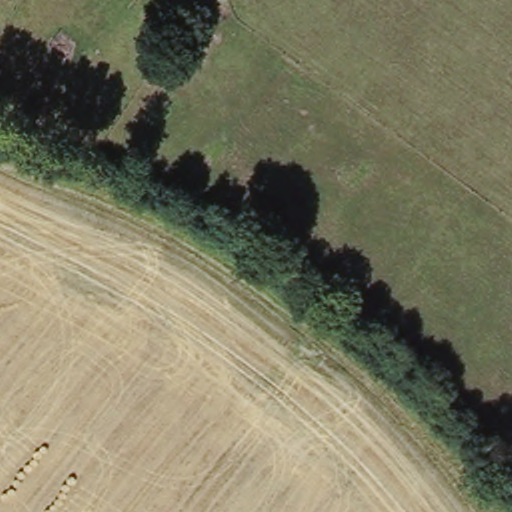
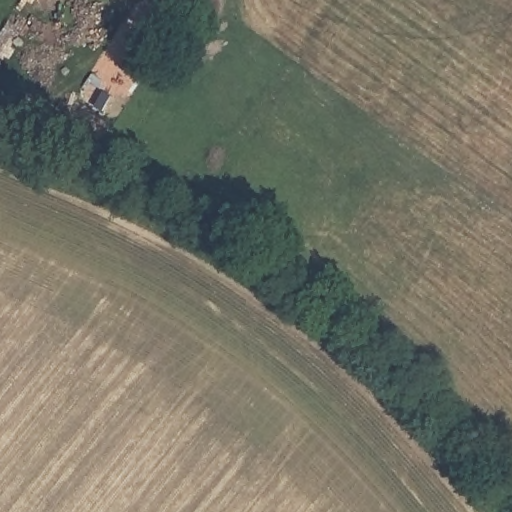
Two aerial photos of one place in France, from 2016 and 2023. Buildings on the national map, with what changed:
[]

